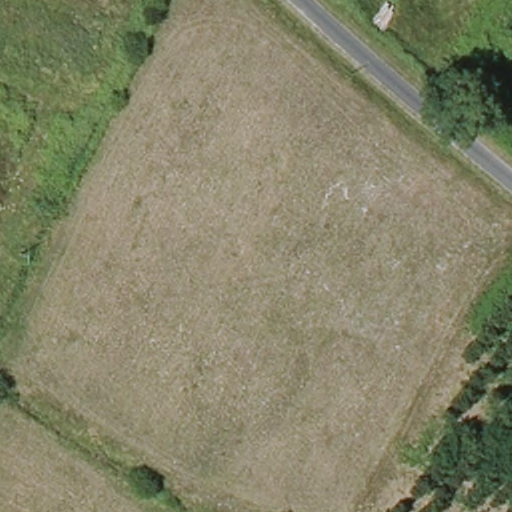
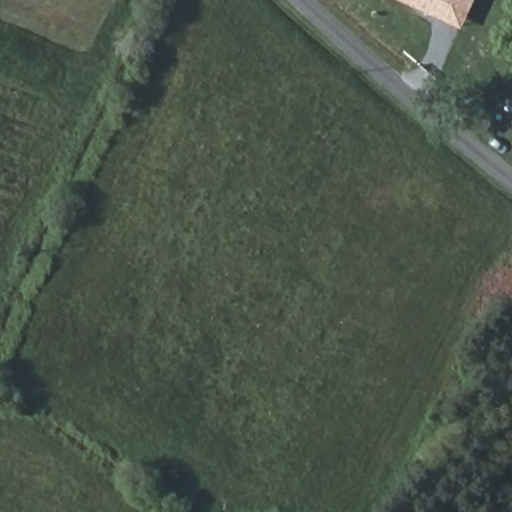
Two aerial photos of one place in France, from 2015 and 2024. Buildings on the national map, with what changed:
new [(462,29),(400,0),(475,0),(462,29)]

